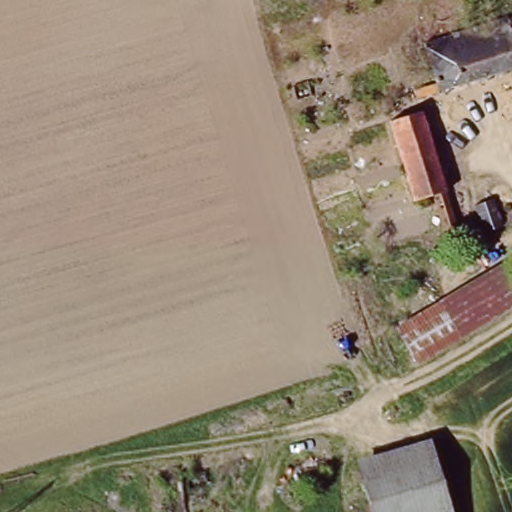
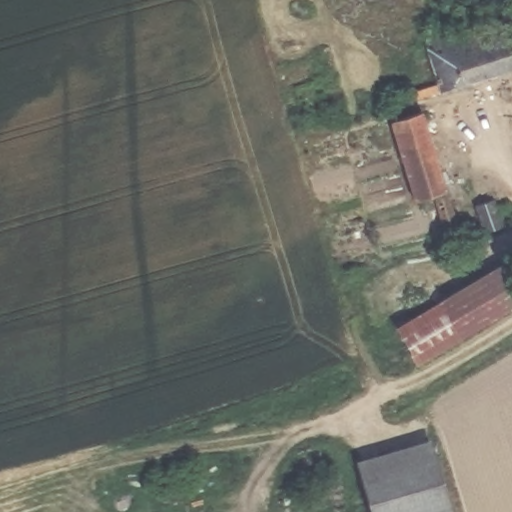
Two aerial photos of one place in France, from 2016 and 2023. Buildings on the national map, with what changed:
unchanged [(512,20),(512,67),(418,98),(416,89),(441,81),(429,45),(512,19),(512,20)]
unchanged [(422,110),(464,239),(449,243),(434,195),(418,199),(392,119),(422,110)]
unchanged [(493,199),(500,227),(482,232),(474,205),(493,199)]
unchanged [(396,327),(512,257),(512,303),(416,361),(396,327)]
unchanged [(432,437),(456,512),(372,512),(356,455),(432,437)]

